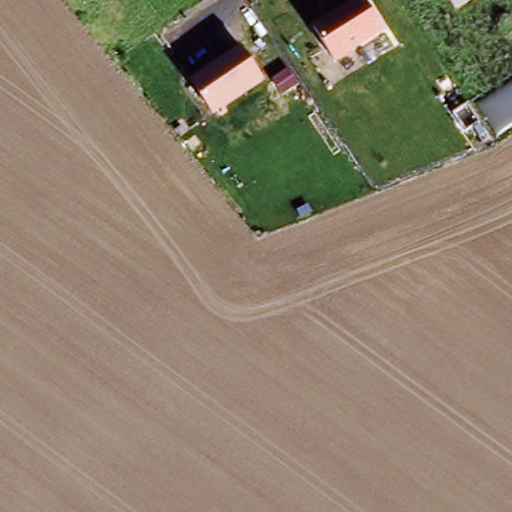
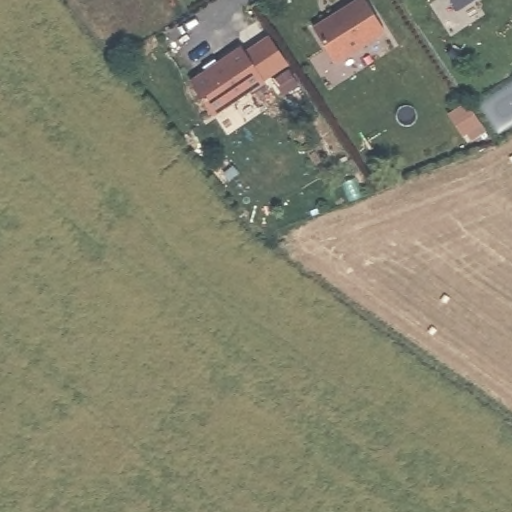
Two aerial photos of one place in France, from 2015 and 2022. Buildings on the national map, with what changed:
unchanged [(356,0),(366,0),(384,29),(334,62),(311,28),(356,0)]
unchanged [(474,0),(455,12),(446,0),(474,0)]
unchanged [(189,81),(243,47),(265,82),(212,116),(189,81)]

